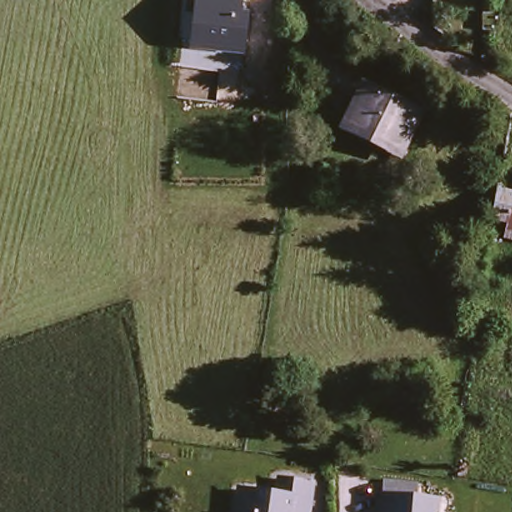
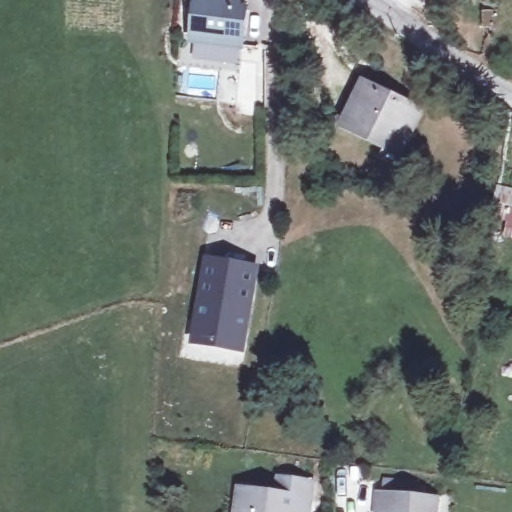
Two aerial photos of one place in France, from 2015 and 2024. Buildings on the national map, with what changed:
unchanged [(252,8),(248,50),(190,45),(198,10),(189,9),(190,0),(244,0),(243,7),(252,8)]
unchanged [(495,10),(498,10),(498,27),(490,27),(485,27),(485,10),(495,10)]
unchanged [(403,146),(350,121),(367,85),(420,110),(403,146)]
unchanged [(502,221),(505,192),(512,194),(512,224),(502,221)]
new [(260,265),(247,354),(192,346),(205,257),(260,265)]
unchanged [(240,487),(280,493),(282,477),(312,481),(307,512),(237,512),(240,487)]
unchanged [(383,493),(442,498),(440,512),(382,512),(383,493)]

